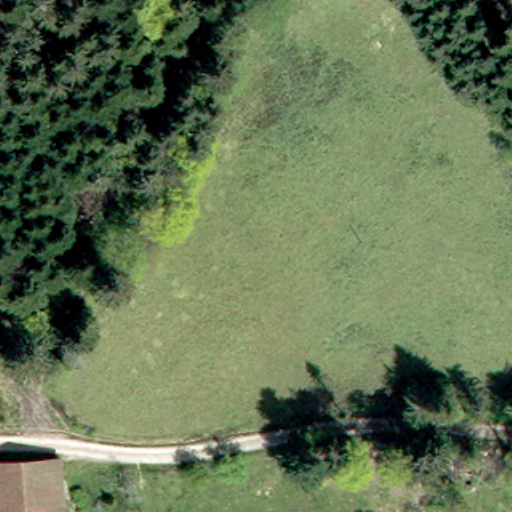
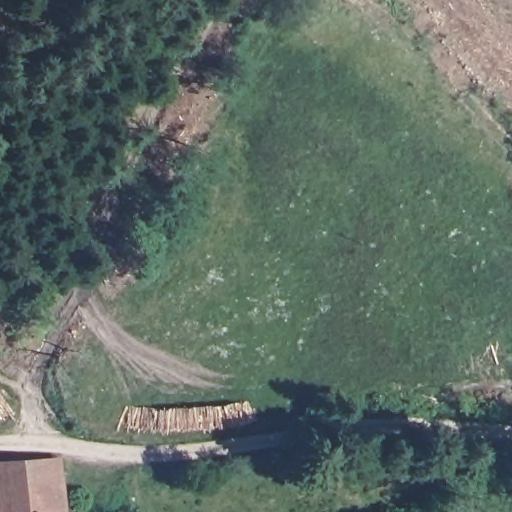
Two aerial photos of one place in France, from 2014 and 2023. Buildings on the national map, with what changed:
unchanged [(60,467),(62,512),(0,512),(0,471),(60,467)]

